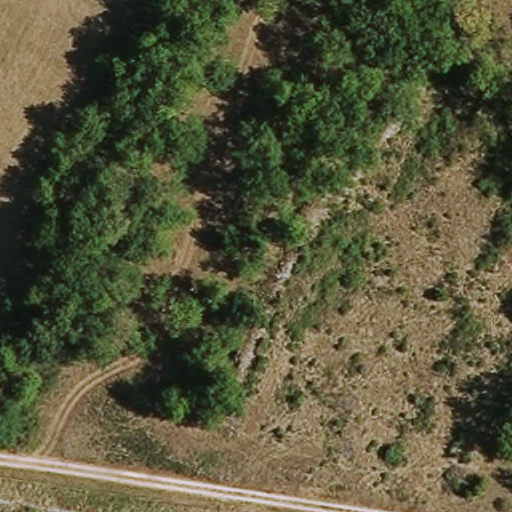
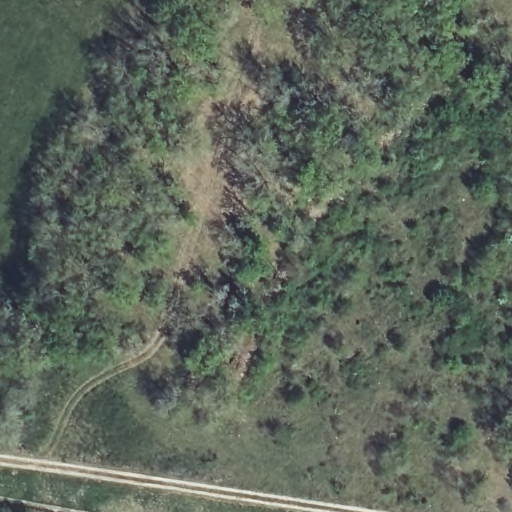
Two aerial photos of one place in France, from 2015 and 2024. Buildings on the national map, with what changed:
[]

